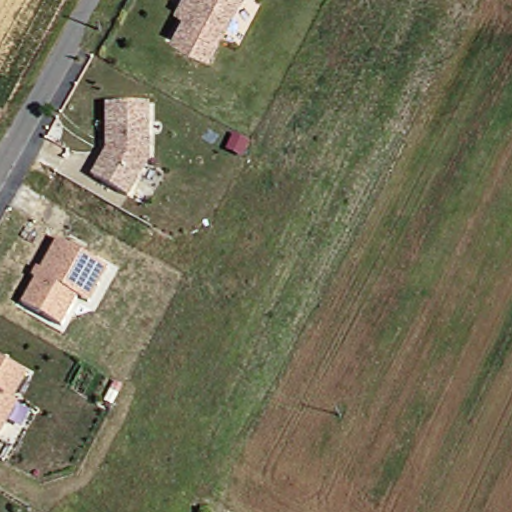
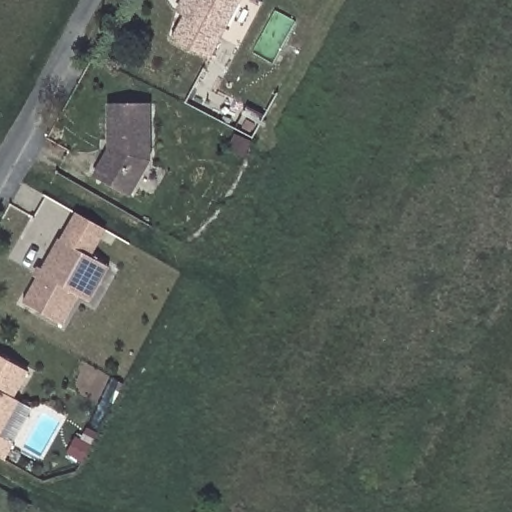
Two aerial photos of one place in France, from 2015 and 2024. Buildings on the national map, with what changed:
unchanged [(175,41),(188,16),(181,12),(187,0),(245,0),(212,61),(175,41)]
unchanged [(114,150),(112,104),(152,103),(153,160),(133,196),(98,177),(114,150)]
new [(76,213),(108,230),(92,258),(60,240),(76,213)]
unchanged [(88,302),(77,296),(61,325),(22,303),(58,239),(101,263),(107,267),(88,302)]
unchanged [(11,397),(17,401),(0,431),(0,357),(26,371),(11,397)]
new [(14,445),(5,461),(0,458),(0,438),(14,445)]

